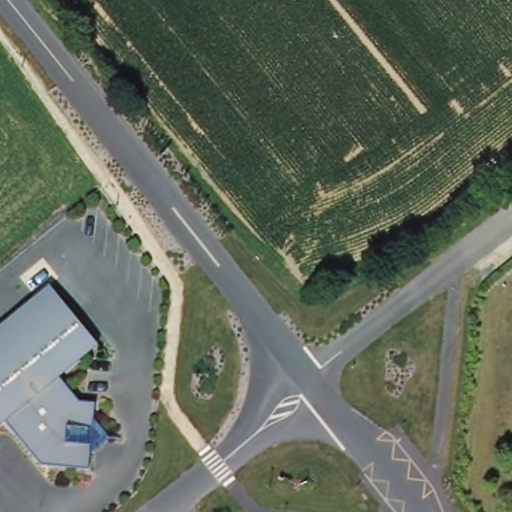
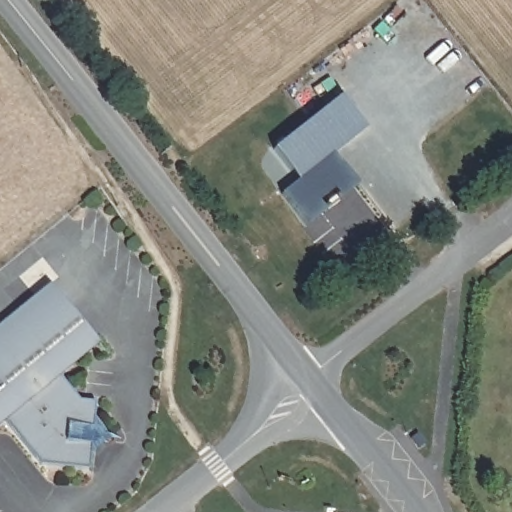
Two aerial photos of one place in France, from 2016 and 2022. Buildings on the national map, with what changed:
new [(366,129),(333,156),(359,186),(307,227),(283,193),(298,180),(274,149),(341,96),(366,129)]
unchanged [(93,447),(91,467),(44,463),(9,420),(0,428),(0,330),(54,286),(102,344),(63,376),(83,400),(99,400),(97,417),(113,433),(93,447)]

